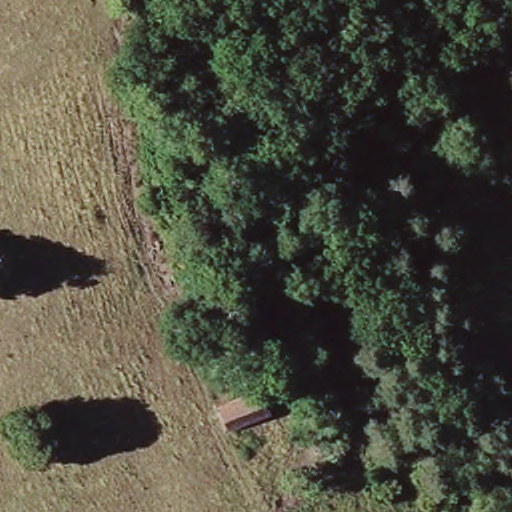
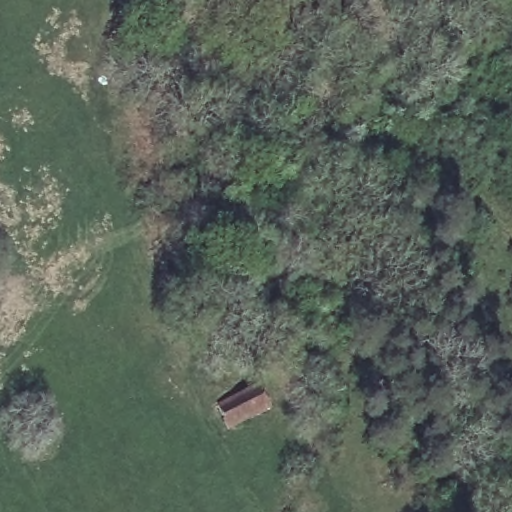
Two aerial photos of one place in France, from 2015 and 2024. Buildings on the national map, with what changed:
unchanged [(210,410),(254,393),(266,417),(222,437),(210,410)]

